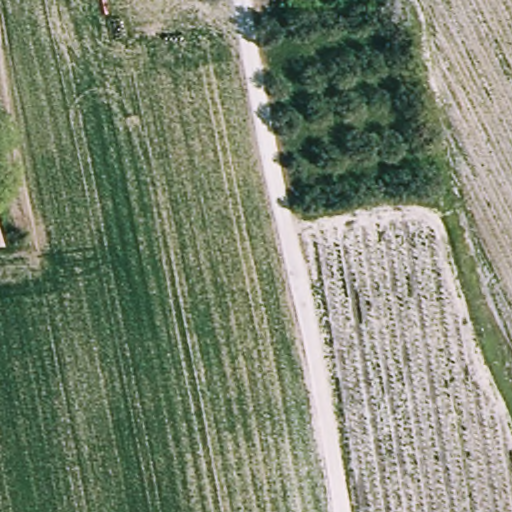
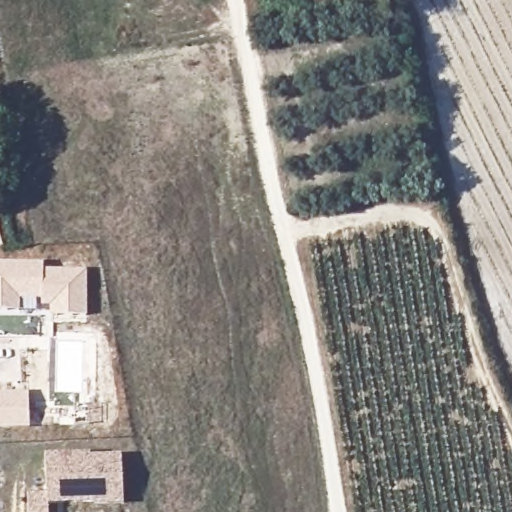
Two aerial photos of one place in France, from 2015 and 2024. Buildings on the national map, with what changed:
new [(11,245),(0,245),(0,198),(11,245)]
new [(0,314),(0,263),(44,263),(44,270),(87,270),(88,318),(51,318),(51,307),(43,307),(42,300),(20,301),(20,313),(0,314)]
new [(29,391),(30,428),(0,430),(0,393),(29,391)]
new [(52,500),(51,460),(95,458),(95,461),(126,460),(128,507),(98,509),(98,506),(53,508),(53,512),(33,512),(33,501),(52,500)]

